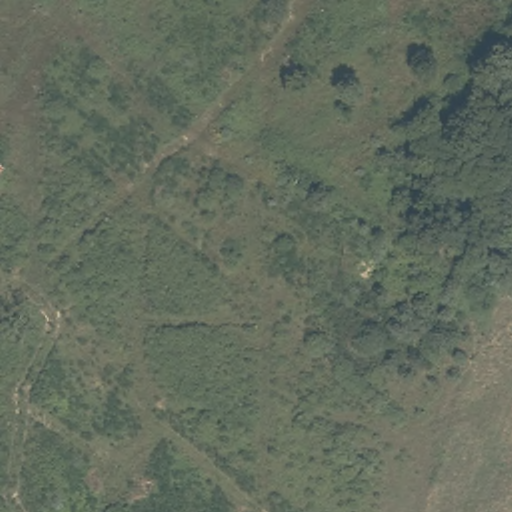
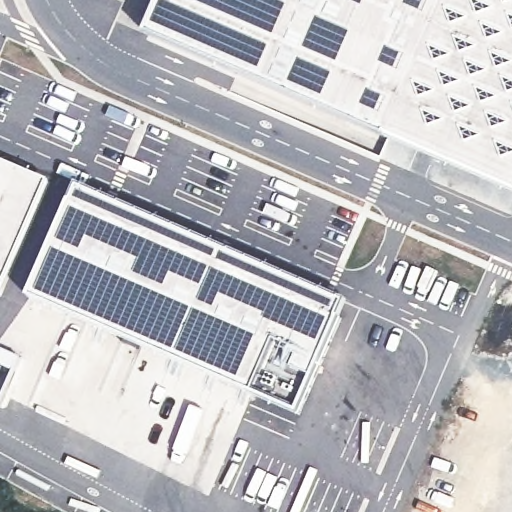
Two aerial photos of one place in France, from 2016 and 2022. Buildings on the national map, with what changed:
new [(159,0),(512,0),(512,194),(144,35),(159,0)]
demolished [(0,170),(0,158),(7,162),(0,170)]
new [(0,298),(0,161),(52,183),(2,299),(0,298)]
new [(302,416),(29,298),(79,188),(348,304),(302,416)]

